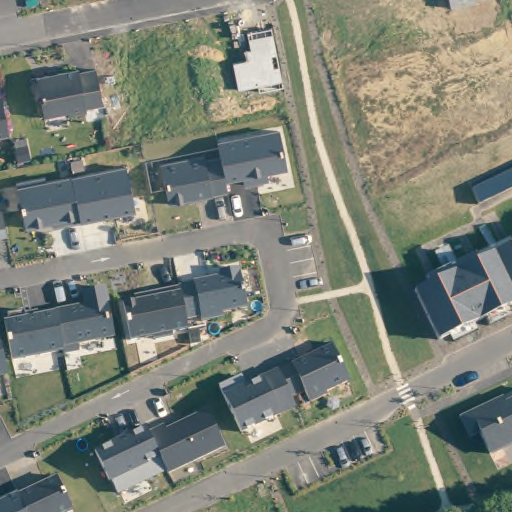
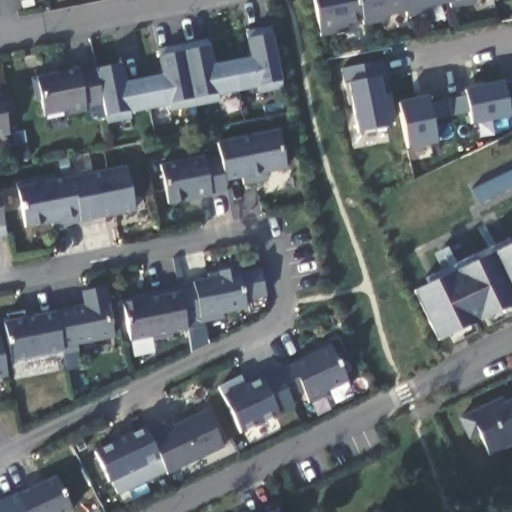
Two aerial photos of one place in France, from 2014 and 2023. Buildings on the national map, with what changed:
new [(448,9),(448,4),(432,7),(433,14),(405,17),(406,12),(386,16),(388,21),(363,25),(364,20),(359,21),(345,25),(348,31),(320,36),(313,0),(473,0),(474,3),(448,9)]
new [(110,114),(103,78),(85,81),(85,78),(39,87),(36,75),(78,68),(79,71),(120,64),(124,82),(161,75),(158,56),(156,48),(205,39),(208,47),(212,65),(249,57),(247,39),(244,31),(270,26),(271,35),(279,80),(283,89),(256,93),(257,87),(218,96),(219,103),(169,112),(169,103),(167,106),(129,114),(130,120),(104,125),(104,115),(110,114)]
new [(358,131),(348,83),(345,68),(383,61),(385,76),(380,77),(383,95),(393,94),(396,120),(389,120),(390,126),(358,131)]
unchanged [(93,116),(94,120),(75,124),(74,120),(51,125),(48,108),(43,109),(39,87),(85,78),(85,81),(103,78),(110,114),(93,116)]
new [(469,114),(452,116),(451,100),(466,97),(464,89),(503,81),(509,117),(471,125),(469,114)]
unchanged [(0,95),(6,94),(15,139),(16,143),(0,146),(0,95)]
new [(408,149),(398,101),(427,96),(428,104),(446,99),(449,116),(432,120),(436,144),(408,149)]
unchanged [(288,170),(265,174),(268,182),(248,186),(246,179),(226,182),(229,194),(169,205),(163,164),(206,155),(207,161),(220,159),(218,141),(278,130),(288,170)]
unchanged [(137,211),(54,227),(53,222),(24,228),(15,183),(48,176),(50,182),(125,167),(137,211)]
unchanged [(482,206),(474,189),(512,169),(512,191),(482,206)]
unchanged [(0,228),(0,200),(6,227),(0,228)]
unchanged [(424,277),(441,268),(436,255),(448,250),(453,263),(511,236),(512,238),(512,304),(509,305),(512,313),(512,314),(489,325),(486,319),(472,325),(476,332),(452,342),(449,336),(437,341),(414,291),(424,277)]
unchanged [(249,308),(223,315),(224,318),(186,326),(187,330),(171,334),(172,336),(155,340),(154,336),(130,341),(123,305),(139,301),(138,295),(221,277),(220,271),(240,267),(249,308)]
unchanged [(79,345),(80,352),(64,356),(63,352),(11,362),(4,320),(10,320),(9,317),(34,312),(35,315),(82,305),(81,292),(103,287),(114,338),(79,345)]
unchanged [(0,377),(0,342),(6,376),(0,377)]
unchanged [(351,383),(307,404),(303,395),(289,400),(295,410),(242,433),(218,386),(240,375),(247,386),(330,344),(351,383)]
unchanged [(502,397),(504,402),(512,399),(512,446),(489,457),(478,435),(467,440),(459,417),(502,397)]
unchanged [(116,496),(94,453),(144,428),(149,437),(207,410),(224,446),(116,496)]
unchanged [(0,501),(58,476),(73,510),(69,512),(0,512),(0,501)]
unchanged [(276,510),(277,512),(273,512),(276,510)]

